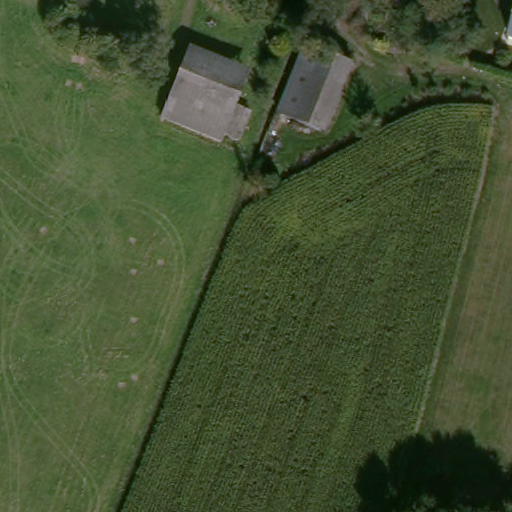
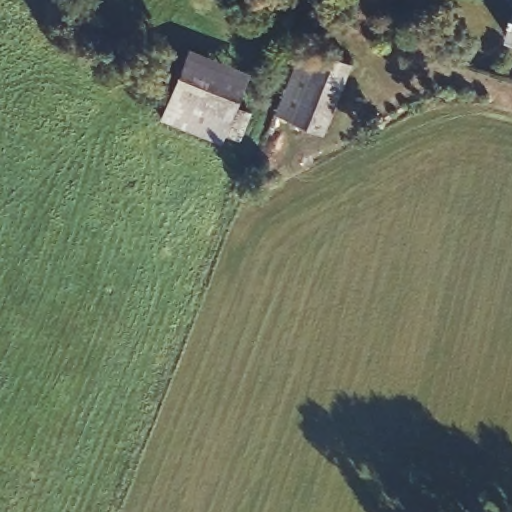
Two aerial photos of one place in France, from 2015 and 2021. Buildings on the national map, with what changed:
unchanged [(510,39),(512,34),(512,39),(510,39)]
unchanged [(351,63),(325,134),(276,117),(303,46),(351,63)]
unchanged [(184,58),(247,82),(235,112),(230,122),(170,98),(184,58)]
unchanged [(230,122),(235,112),(249,118),(239,143),(225,138),(221,146),(161,122),(170,98),(230,122)]

